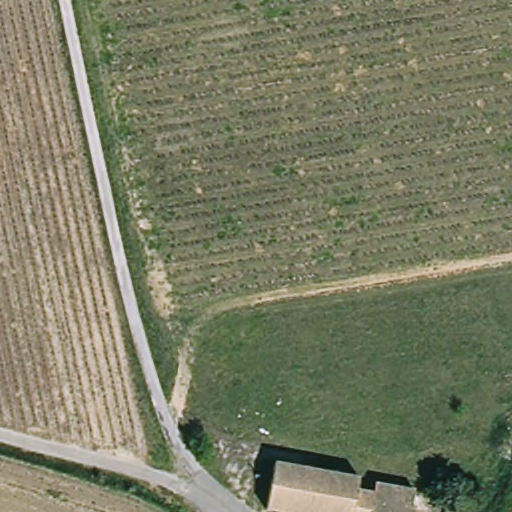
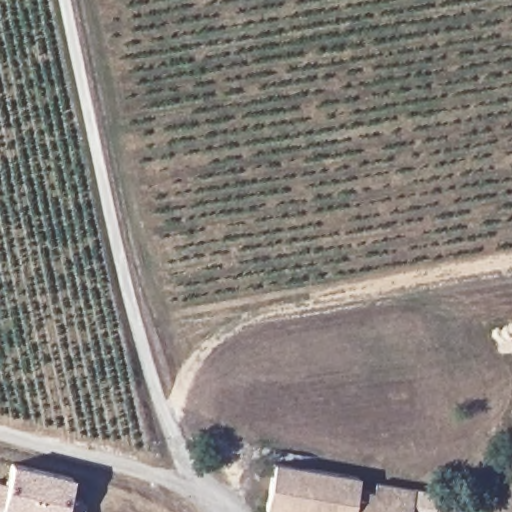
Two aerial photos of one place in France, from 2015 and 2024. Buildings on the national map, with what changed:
new [(6,483),(11,462),(72,476),(67,497),(84,502),(81,512),(12,512),(1,509),(0,512),(0,482),(6,483)]
unchanged [(266,510),(276,463),(358,480),(357,491),(374,495),(376,488),(413,495),(409,512),(274,512),(266,510)]

